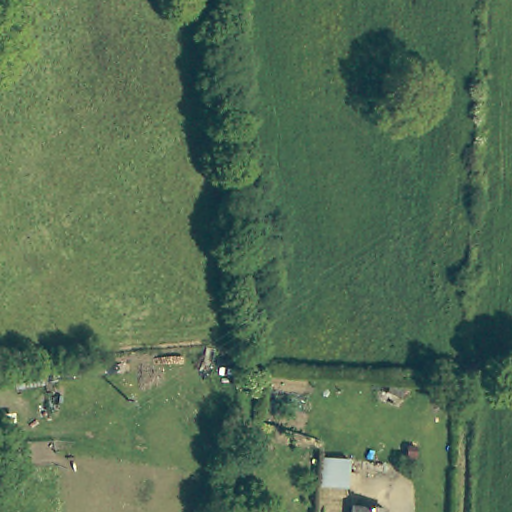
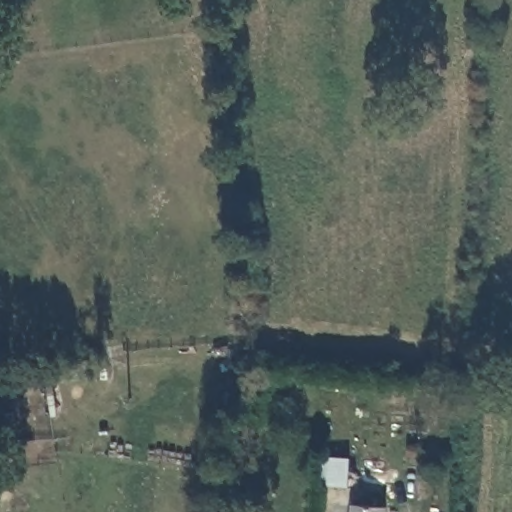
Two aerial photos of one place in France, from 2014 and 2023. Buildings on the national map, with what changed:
unchanged [(387,379),(405,388),(400,399),(382,390),(387,379)]
unchanged [(343,489),(309,487),(309,454),(345,457),(343,489)]
unchanged [(350,507),(384,508),(384,512),(350,512),(350,507)]

